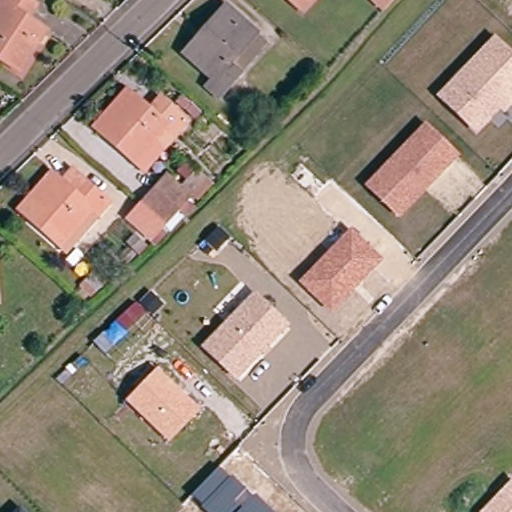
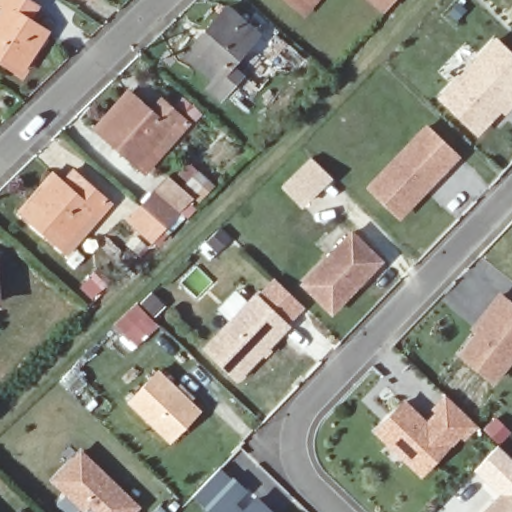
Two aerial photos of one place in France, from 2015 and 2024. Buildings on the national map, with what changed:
unchanged [(1,2),(1,0),(32,0),(38,4),(29,17),(50,31),(25,71),(0,55),(0,17),(7,6),(1,2)]
unchanged [(289,0),(302,0),(296,7),(289,0)]
unchanged [(380,0),(393,0),(387,7),(380,0)]
unchanged [(205,39),(199,34),(225,5),(258,35),(232,63),(241,71),(217,97),(204,87),(210,80),(187,59),(205,39)]
unchanged [(495,36),(512,52),(512,105),(503,115),(499,111),(476,134),(436,97),(495,36)]
unchanged [(136,162),(98,130),(130,94),(153,112),(163,101),(187,122),(164,146),(143,169),(136,162)]
unchanged [(425,122),(460,155),(400,219),(364,186),(425,122)]
new [(312,159),(332,177),(303,205),(285,187),(312,159)]
unchanged [(60,172),(66,177),(76,166),(113,197),(102,209),(104,211),(71,247),(28,208),(60,172)]
unchanged [(183,184),(187,180),(197,168),(205,175),(195,187),(191,191),(183,184)]
unchanged [(125,219),(140,204),(153,189),(168,173),(193,196),(179,211),(165,226),(151,242),(125,219)]
unchanged [(350,228),(383,259),(331,313),(298,282),(350,228)]
unchanged [(133,234),(145,244),(136,254),(125,244),(133,234)]
unchanged [(119,258),(128,248),(137,256),(128,266),(119,258)]
unchanged [(98,267),(110,279),(101,288),(89,276),(98,267)]
unchanged [(254,292),(289,325),(237,380),(202,347),(254,292)]
new [(477,327),(489,311),(501,296),(512,304),(512,357),(494,380),(462,355),(481,331),(477,327)]
unchanged [(156,369),(200,410),(167,442),(125,401),(156,369)]
new [(375,431),(404,400),(427,421),(437,409),(463,432),(421,476),(375,431)]
new [(141,506),(135,512),(94,512),(89,507),(84,511),(49,479),(80,449),(141,506)]
unchanged [(192,497),(222,467),(256,496),(274,512),(209,512),(192,497)]
unchanged [(479,512),(511,477),(512,478),(512,512),(478,512),(479,512)]
unchanged [(19,506),(25,512),(12,512),(19,506)]

